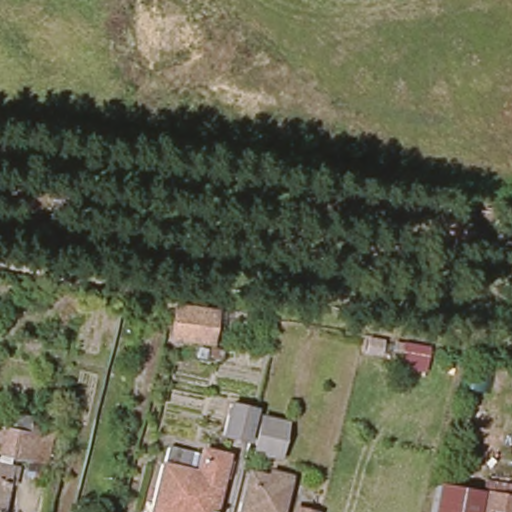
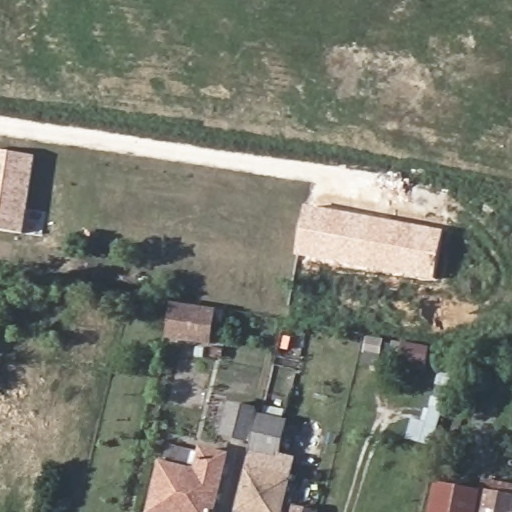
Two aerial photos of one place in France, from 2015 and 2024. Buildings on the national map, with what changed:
new [(22,234),(0,231),(0,151),(34,156),(22,234)]
new [(435,280),(296,255),(305,205),(443,230),(435,280)]
unchanged [(221,308),(217,344),(175,339),(179,303),(221,308)]
unchanged [(275,346),(280,324),(302,329),(297,351),(275,346)]
new [(427,346),(425,369),(399,366),(400,358),(392,357),(393,342),(427,346)]
unchanged [(226,432),(234,401),(260,407),(252,439),(226,432)]
unchanged [(266,415),(291,421),(282,457),(257,453),(266,415)]
unchanged [(0,452),(0,432),(1,427),(37,433),(32,458),(0,452)]
unchanged [(161,501),(170,462),(206,470),(212,447),(226,451),(234,453),(219,512),(158,512),(161,501)]
unchanged [(245,510),(255,470),(269,474),(272,464),(288,468),(286,479),(293,480),(286,512),(253,512),(245,510)]
unchanged [(442,473),(512,486),(512,512),(434,512),(442,473)]
unchanged [(11,482),(5,512),(0,512),(0,480),(11,482)]
unchanged [(301,507),(321,512),(320,512),(300,512),(301,507)]

